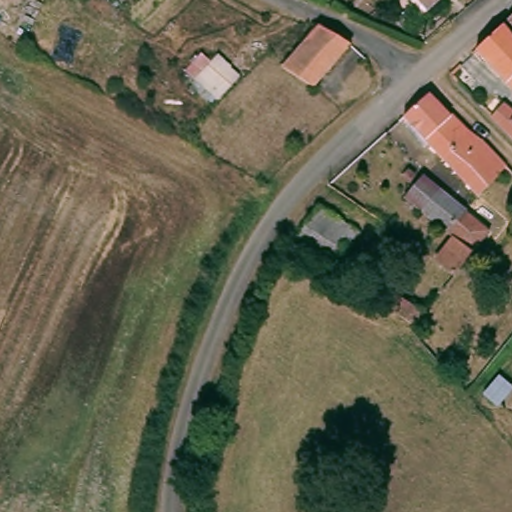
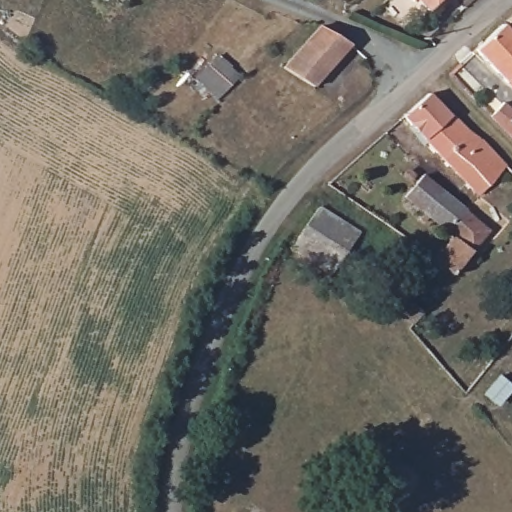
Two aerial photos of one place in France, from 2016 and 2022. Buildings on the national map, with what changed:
unchanged [(402,3),(397,6),(392,0),(431,0),(411,14),(402,3)]
unchanged [(508,23),(512,20),(512,27),(508,23)]
unchanged [(508,23),(512,27),(512,85),(478,47),(508,23)]
unchanged [(282,71),(308,41),(310,39),(318,30),(346,52),(343,55),(337,63),(311,92),(282,71)]
unchanged [(496,187),(485,198),(394,118),(421,93),(457,124),(470,136),(482,148),(509,172),(496,187)]
unchanged [(456,239),(452,233),(428,213),(410,198),(426,179),(443,193),(467,214),(492,234),(472,257),(452,281),(432,265),(456,239)]
unchanged [(343,217),(361,231),(351,245),(329,274),(300,250),(291,242),(322,200),(343,217)]
unchanged [(396,313),(390,308),(403,292),(407,288),(435,312),(417,333),(396,313)]

